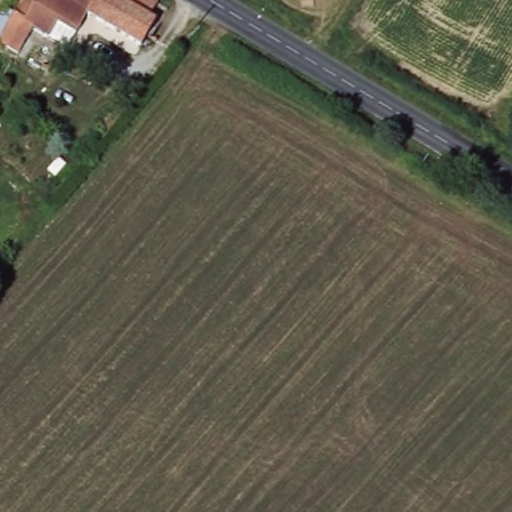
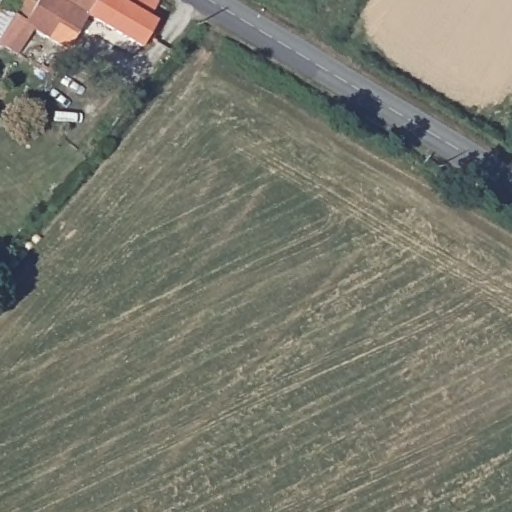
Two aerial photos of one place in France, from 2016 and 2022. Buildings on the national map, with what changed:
unchanged [(1,11),(15,17),(25,0),(27,0),(37,5),(40,0),(125,0),(159,0),(162,2),(151,17),(165,25),(155,41),(150,39),(143,48),(92,17),(69,52),(35,32),(20,56),(0,45),(0,13),(1,11)]

